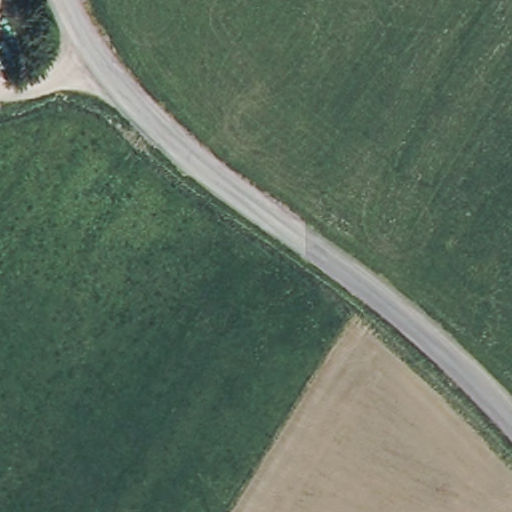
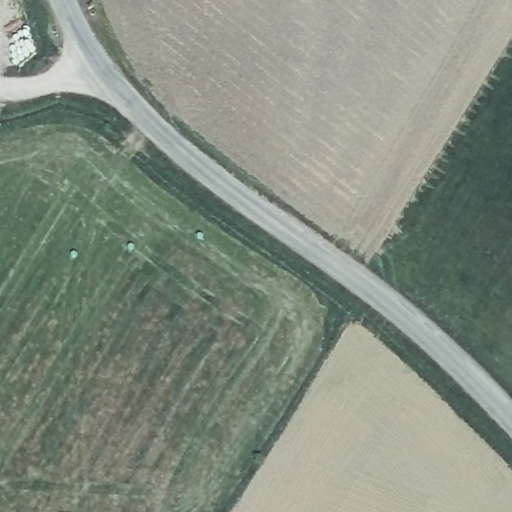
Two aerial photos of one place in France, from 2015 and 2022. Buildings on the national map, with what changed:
[]

